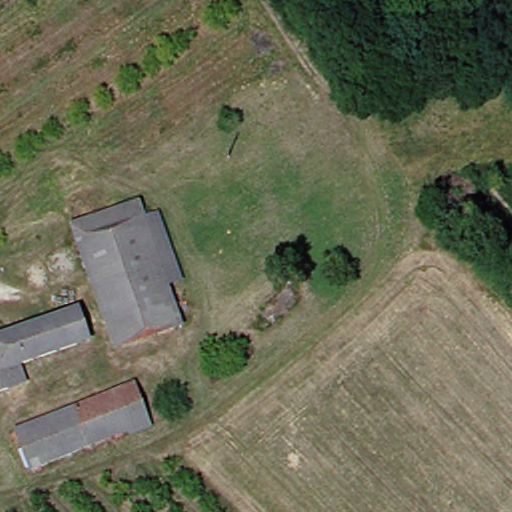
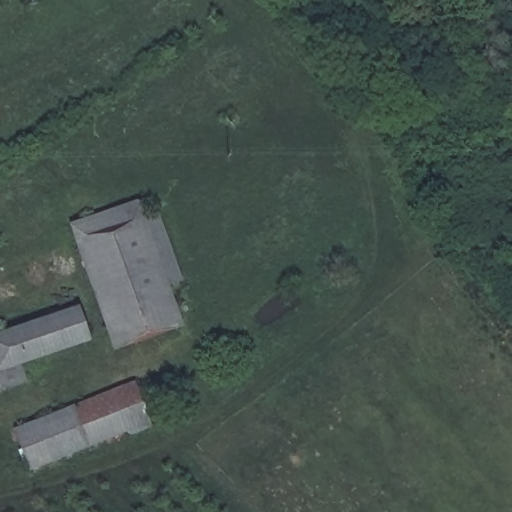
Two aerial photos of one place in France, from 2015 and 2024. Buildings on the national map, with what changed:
unchanged [(85,247),(75,227),(142,201),(151,219),(85,247)]
unchanged [(168,212),(195,286),(180,297),(151,219),(168,212)]
unchanged [(180,297),(183,303),(118,333),(85,247),(151,219),(180,297)]
unchanged [(183,303),(195,331),(130,359),(118,333),(183,303)]
unchanged [(90,345),(0,375),(0,335),(80,307),(90,345)]
unchanged [(142,378),(153,401),(109,421),(100,398),(142,378)]
unchanged [(109,421),(153,401),(161,423),(39,476),(20,431),(100,398),(109,421)]

